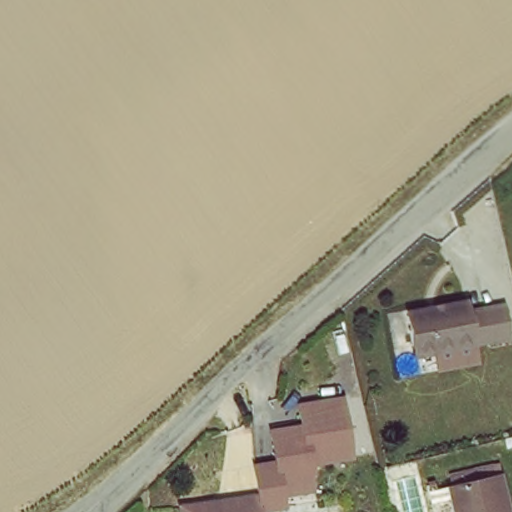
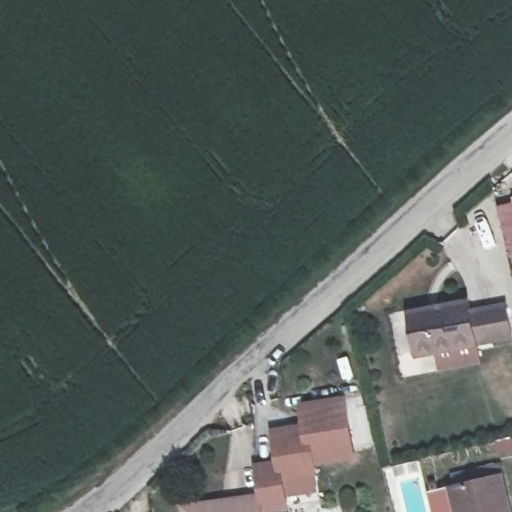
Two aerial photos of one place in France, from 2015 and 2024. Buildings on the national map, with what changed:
new [(509,258),(496,205),(512,201),(512,257),(509,258)]
unchanged [(469,305),(471,313),(487,309),(492,338),(478,341),(478,344),(418,357),(410,318),(469,305)]
unchanged [(278,497),(280,506),(255,510),(253,495),(252,488),(250,479),(248,467),(270,464),(265,433),(298,428),(294,406),(337,399),(346,455),(306,463),(309,476),(303,477),(307,491),(278,497)]
unchanged [(461,496),(459,485),(497,476),(499,487),(506,486),(512,512),(458,512),(454,498),(461,496)]
unchanged [(255,510),(255,512),(176,512),(176,509),(253,495),(255,510)]

